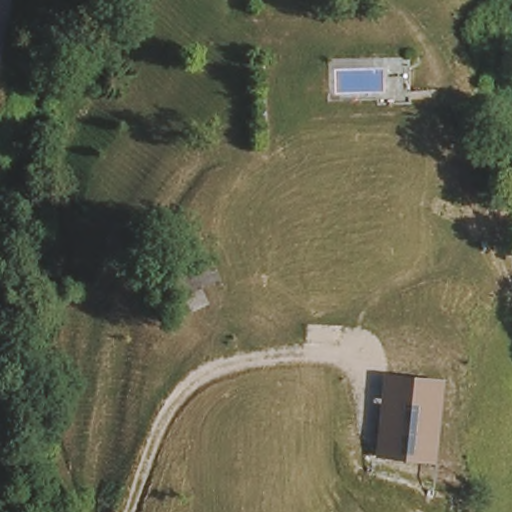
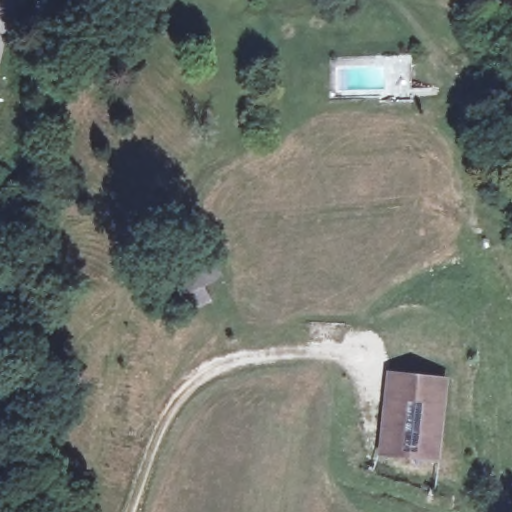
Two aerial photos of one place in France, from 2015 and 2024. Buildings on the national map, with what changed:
unchanged [(176,273),(205,258),(215,280),(183,295),(176,273)]
unchanged [(442,467),(378,461),(385,374),(450,384),(442,467)]

